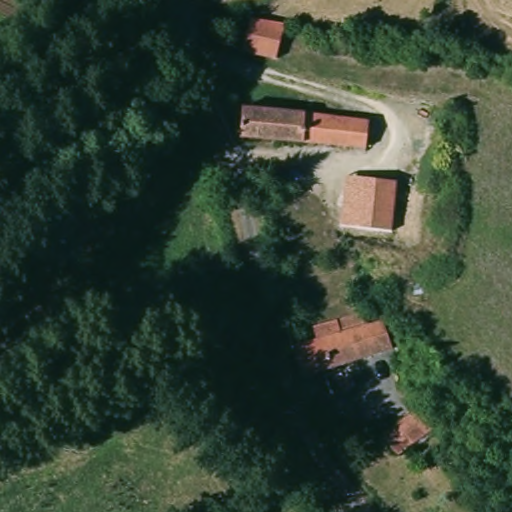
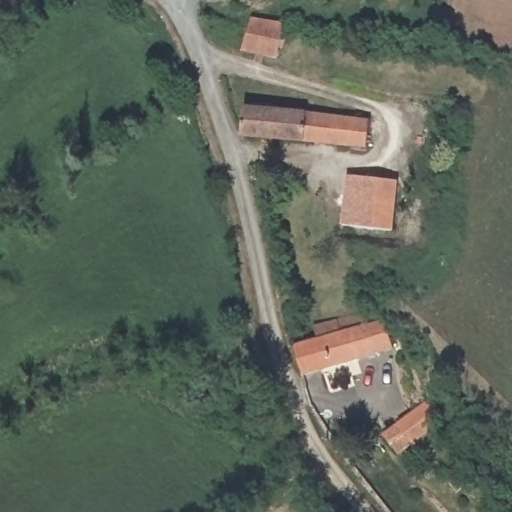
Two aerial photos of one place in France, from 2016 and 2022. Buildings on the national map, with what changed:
unchanged [(279,49),(277,55),(273,54),(246,49),(253,17),(285,24),(279,49)]
unchanged [(242,130),(243,119),(243,118),(243,116),(243,114),(244,105),(300,111),(302,111),(304,111),(308,112),(369,119),(367,144),(242,133),(242,130)]
unchanged [(389,174),(387,180),(386,183),(383,194),(382,194),(382,197),(381,201),(380,203),(378,211),(376,217),(376,219),(370,218),(364,215),(363,215),(365,204),(349,200),(358,166),(389,173),(389,174)]
unchanged [(296,360),(293,352),(291,346),(314,339),(310,325),(311,325),(312,324),(316,323),(326,320),(336,317),(338,317),(340,316),(345,314),(354,312),(355,312),(357,312),(361,310),(363,315),(365,323),(381,319),(390,346),(374,351),(300,374),(296,360)]
unchanged [(410,444),(407,445),(398,453),(384,433),(428,399),(431,403),(440,414),(443,419),(410,444)]

